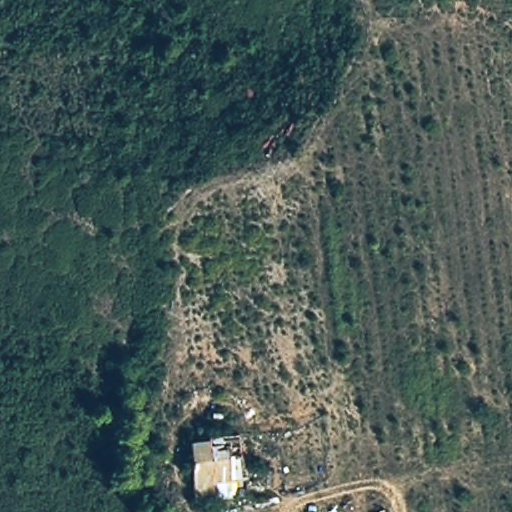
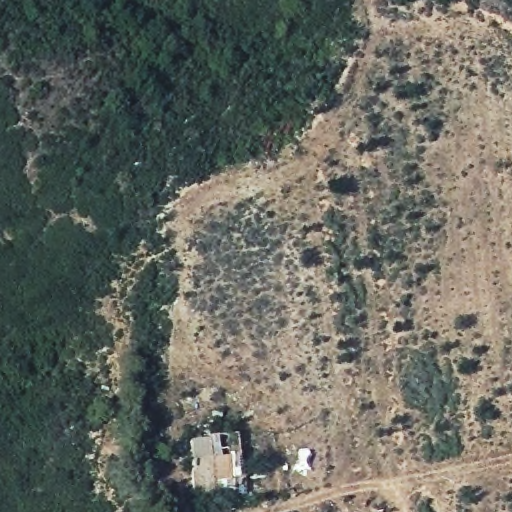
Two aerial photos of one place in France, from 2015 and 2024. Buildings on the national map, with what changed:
unchanged [(186,439),(203,439),(219,433),(220,456),(229,455),(231,498),(214,500),(214,494),(191,497),(186,439)]

